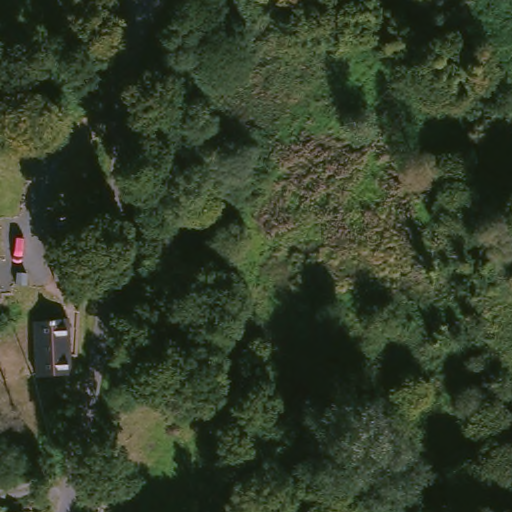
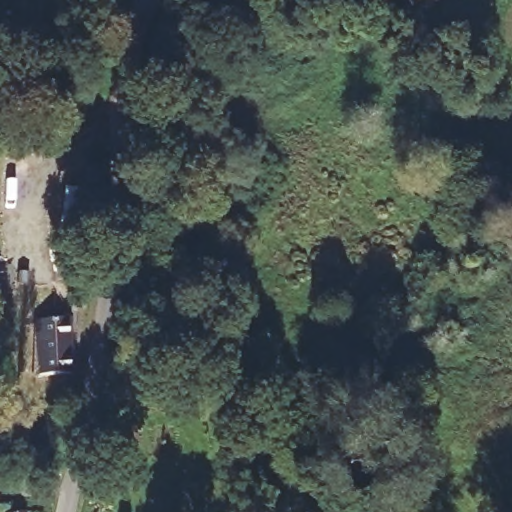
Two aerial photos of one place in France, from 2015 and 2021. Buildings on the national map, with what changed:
unchanged [(69,315),(69,370),(36,371),(36,317),(69,315)]
unchanged [(3,511),(20,506),(21,512),(0,512),(3,511)]

